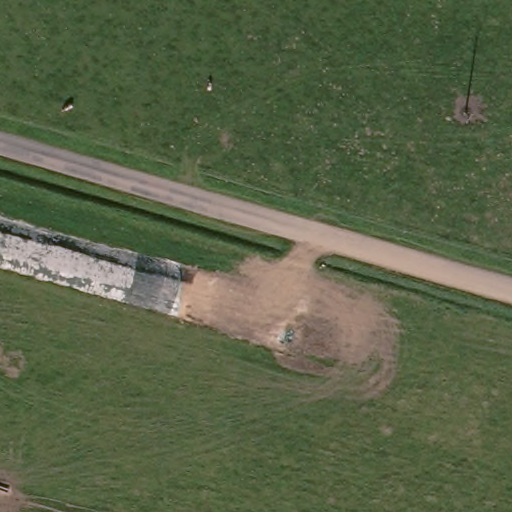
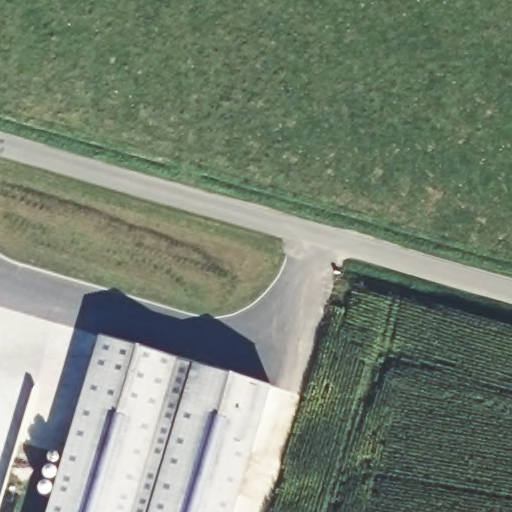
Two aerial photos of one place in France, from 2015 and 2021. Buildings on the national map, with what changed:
new [(235,512),(48,512),(100,339),(271,389),(235,512)]

